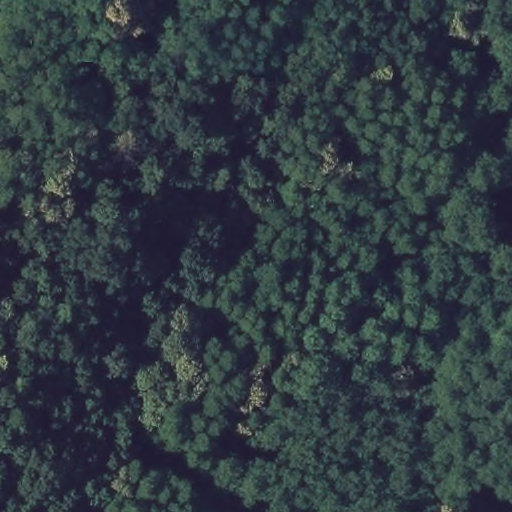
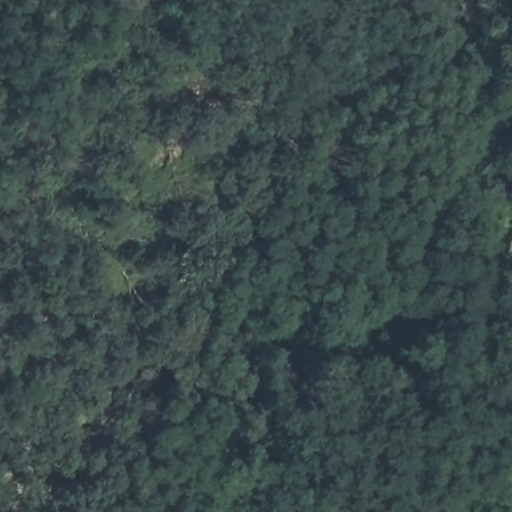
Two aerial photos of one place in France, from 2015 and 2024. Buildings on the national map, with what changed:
[]

